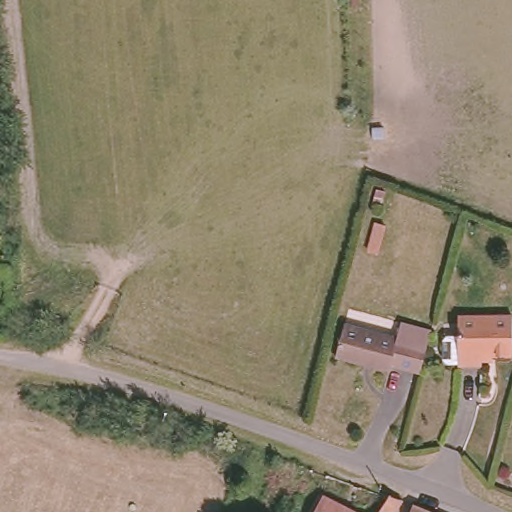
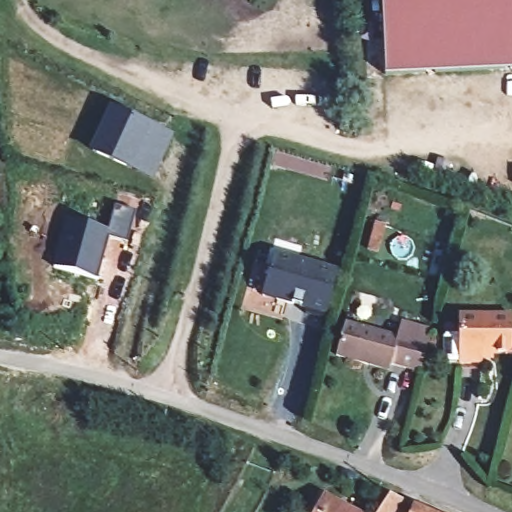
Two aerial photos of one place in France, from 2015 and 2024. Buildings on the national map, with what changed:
new [(379,20),(378,0),(512,0),(512,13),(379,20)]
new [(512,13),(512,69),(381,76),(379,20),(512,13)]
new [(154,181),(89,152),(110,106),(174,136),(154,181)]
new [(127,244),(109,238),(97,279),(52,266),(67,217),(107,230),(114,205),(135,211),(127,244)]
unchanged [(0,240),(3,240),(3,263),(0,263),(0,240)]
new [(301,308),(302,304),(292,302),(292,306),(262,298),(275,252),(340,270),(327,316),(301,308)]
unchanged [(487,349),(487,359),(464,359),(464,312),(512,312),(512,349),(487,349)]
unchanged [(396,360),(394,367),(341,352),(350,318),(402,332),(406,318),(436,327),(424,368),(396,360)]
unchanged [(392,493),(394,490),(407,495),(396,512),(379,512),(392,493)]
unchanged [(327,491),(369,512),(316,512),(327,491)]
unchanged [(418,505),(436,512),(415,512),(418,505)]

